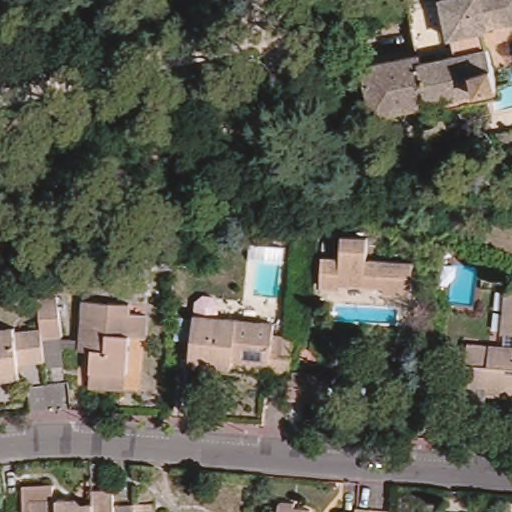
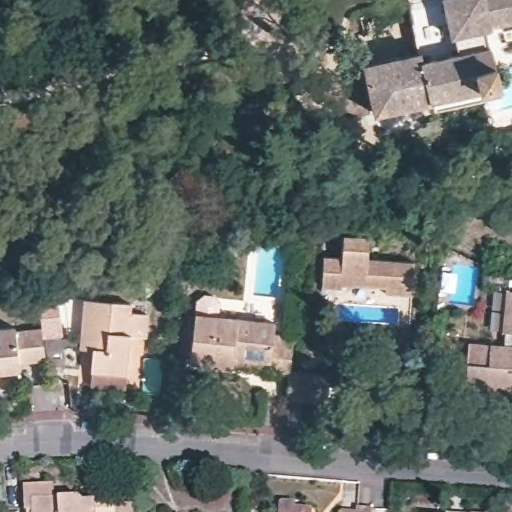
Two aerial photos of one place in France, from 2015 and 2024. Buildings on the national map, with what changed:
unchanged [(436,112),(434,102),(379,114),(378,114),(377,114),(376,114),(375,113),(367,76),(365,64),(420,52),(410,4),(426,0),(512,0),(512,44),(492,48),(500,84),(502,97),(436,112)]
unchanged [(411,296),(411,297),(410,297),(410,298),(408,298),(385,295),(385,292),(385,291),(385,290),(343,285),(342,285),(342,286),(341,286),(340,286),(340,290),(322,288),(321,287),(320,287),(320,286),(320,285),(322,258),(322,257),(323,257),(323,256),(325,256),(342,258),(344,237),(368,239),(367,260),(413,265),(411,296)]
unchanged [(504,334),(506,313),(507,293),(512,293),(512,335),(504,334)]
unchanged [(199,318),(200,318),(202,304),(209,298),(218,299),(225,307),(223,321),(278,326),(277,336),(295,338),(291,376),(267,373),(233,370),(193,366),(199,318)]
unchanged [(0,386),(0,351),(8,350),(5,335),(22,332),(22,337),(47,334),(44,303),(63,301),(68,341),(49,343),(51,363),(27,366),(27,374),(29,383),(0,386)]
unchanged [(92,392),(93,376),(95,356),(84,355),(85,344),(88,305),(132,310),(132,318),(148,320),(147,343),(131,341),(128,379),(127,395),(92,392)]
unchanged [(504,398),(483,395),(485,386),(467,384),(468,363),(470,345),(490,347),(512,350),(512,399),(504,398)]
unchanged [(327,401),(327,402),(326,403),(325,403),(288,400),(291,376),(328,380),(327,401)]
unchanged [(73,499),(78,499),(85,505),(94,505),(94,492),(115,491),(115,507),(116,512),(31,512),(30,503),(73,499)]
unchanged [(280,496),(292,496),(292,503),(305,503),(308,504),(310,506),(312,508),(312,510),(312,512),(274,512),(275,501),(280,496)]
unchanged [(137,512),(116,512),(115,507),(137,506),(137,512)]
unchanged [(358,512),(358,508),(373,509),(373,512),(358,512)]

